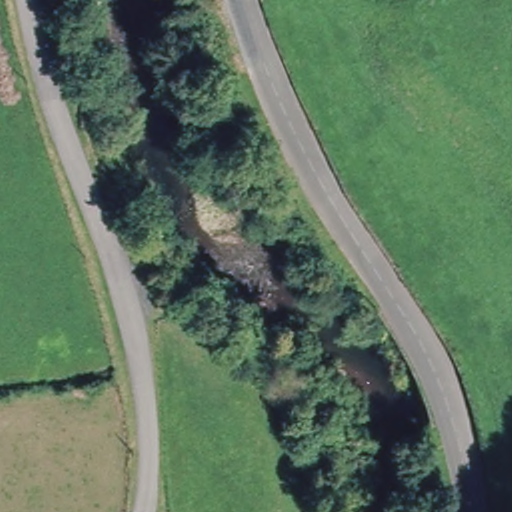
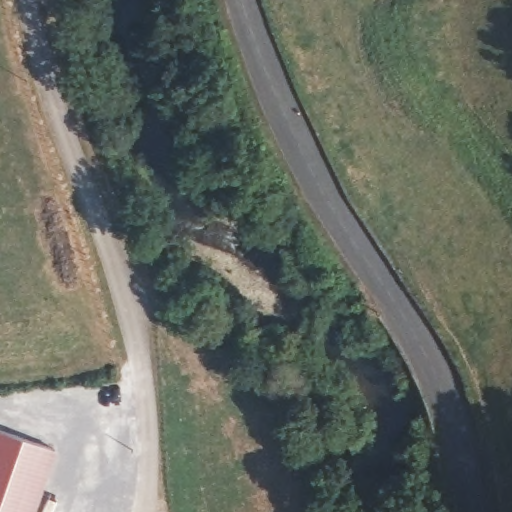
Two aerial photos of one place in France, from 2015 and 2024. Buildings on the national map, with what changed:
new [(57,450),(35,512),(0,512),(0,430),(57,450)]

